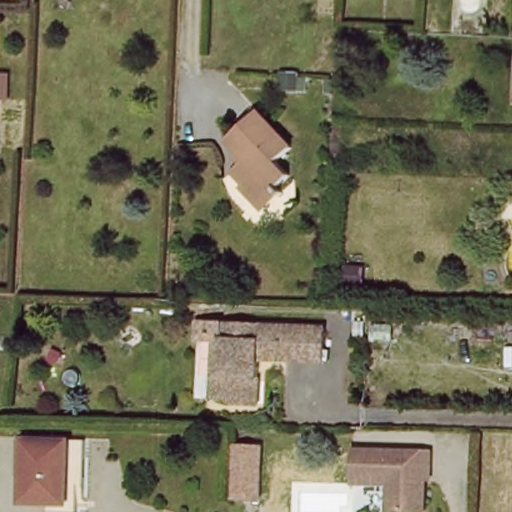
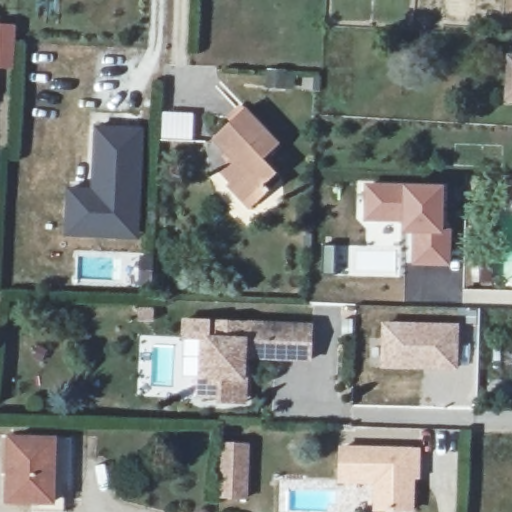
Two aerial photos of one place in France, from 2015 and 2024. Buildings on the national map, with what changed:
unchanged [(232,183),(235,180),(223,167),(231,159),(226,154),(230,150),(217,136),(247,107),(281,143),(267,157),(280,171),(268,183),(273,188),(269,191),(254,206),(232,183)]
new [(140,224),(70,220),(71,190),(95,191),(98,128),(144,130),(140,224)]
unchanged [(509,172),(512,172),(512,187),(509,187),(509,172)]
new [(444,189),(441,233),(449,233),(445,262),(415,260),(417,222),(368,219),(370,187),(444,189)]
new [(140,224),(139,239),(69,235),(70,220),(140,224)]
unchanged [(217,337),(217,320),(317,321),(316,360),(248,356),(247,401),(206,400),(206,336),(217,337)]
new [(381,320),(459,322),(459,370),(379,369),(381,320)]
unchanged [(71,435),(67,505),(61,504),(60,512),(33,510),(33,504),(7,503),(9,432),(71,435)]
unchanged [(252,443),(251,499),(220,498),(222,443),(252,443)]
unchanged [(415,470),(410,470),(409,512),(372,512),(373,485),(337,483),(339,450),(415,453),(415,470)]

